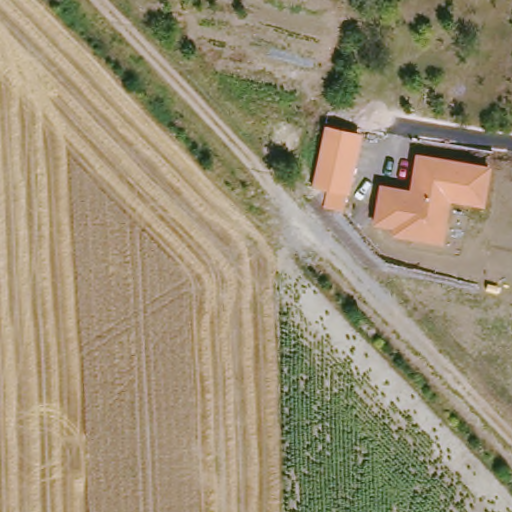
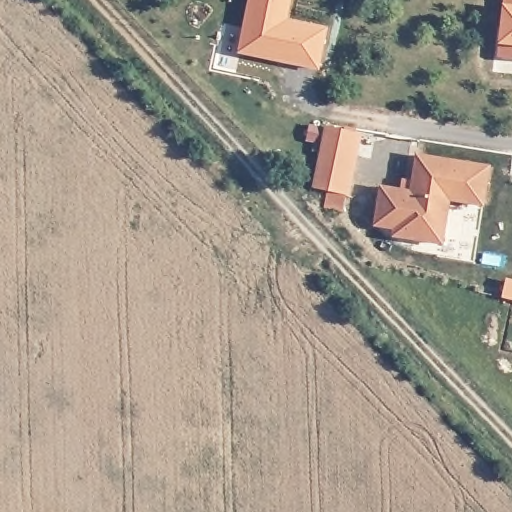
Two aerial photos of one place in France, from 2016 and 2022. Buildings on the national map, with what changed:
new [(328,27),(320,70),(238,53),(249,0),(291,0),(288,19),(328,27)]
new [(505,0),(512,0),(512,73),(497,71),(505,0)]
unchanged [(349,192),(343,211),(324,208),(329,189),(313,187),(326,127),(361,133),(349,192)]
unchanged [(485,206),(452,201),(444,245),(394,237),(396,229),(376,225),(383,186),(413,189),(418,154),(494,165),(485,206)]
new [(505,283),(512,285),(512,301),(502,298),(505,283)]

